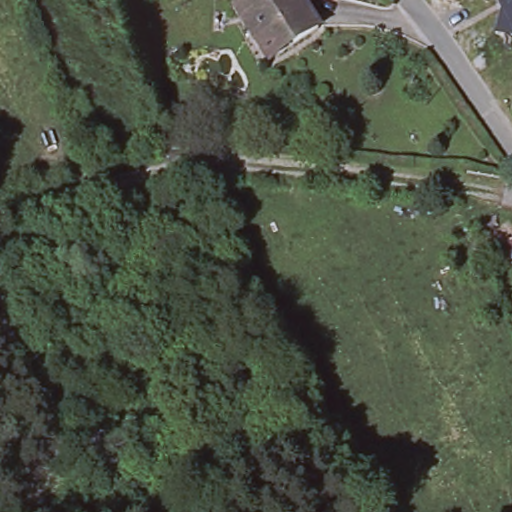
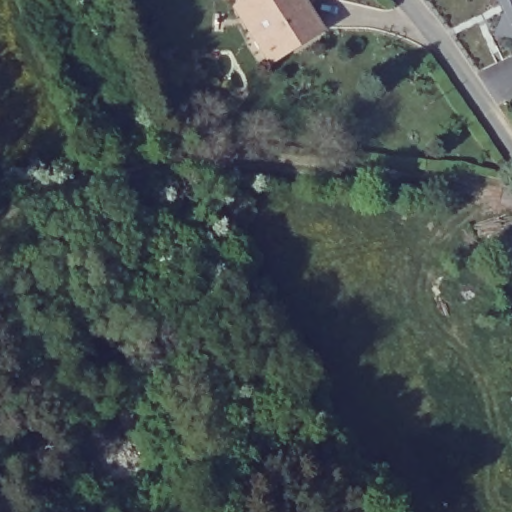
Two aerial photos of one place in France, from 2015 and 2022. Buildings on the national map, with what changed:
unchanged [(264,61),(251,39),(230,4),(236,0),(300,0),(305,9),(317,28),(309,32),(264,61)]
unchanged [(512,0),(512,37),(496,0),(512,0)]

